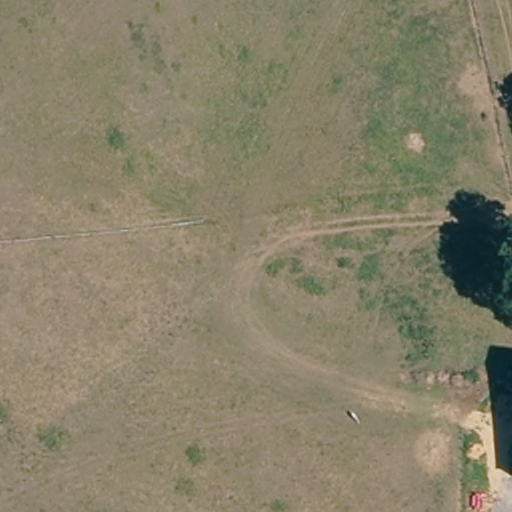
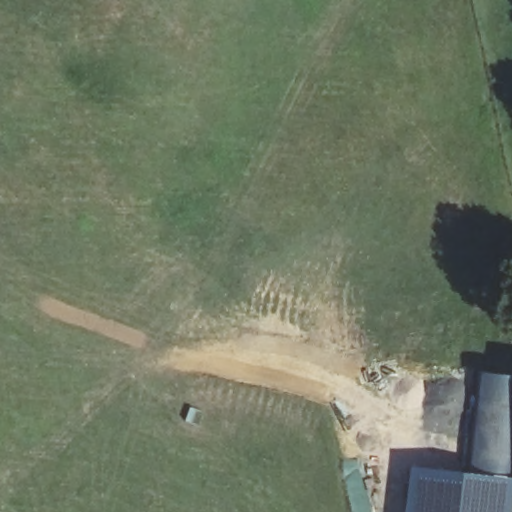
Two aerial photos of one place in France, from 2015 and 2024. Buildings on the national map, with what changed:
new [(478,372),(512,375),(512,476),(469,473),(478,372)]
new [(469,473),(512,476),(512,512),(406,512),(411,466),(469,473)]

